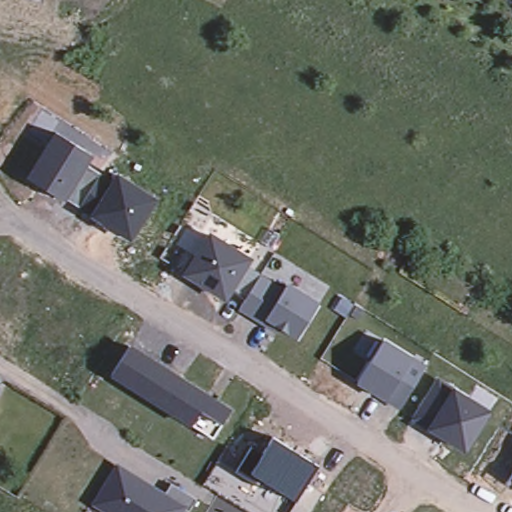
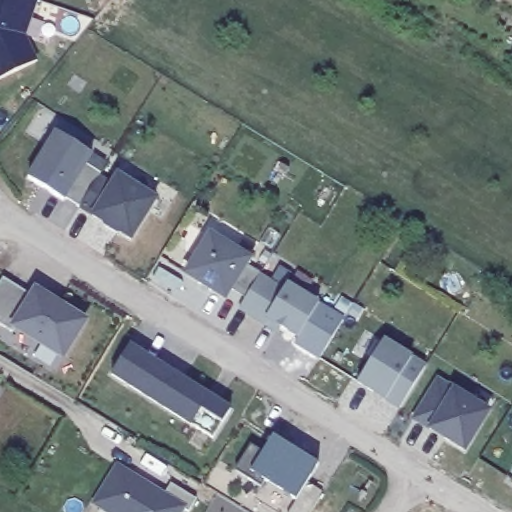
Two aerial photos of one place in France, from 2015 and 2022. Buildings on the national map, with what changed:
new [(27,34),(37,60),(0,79),(0,0),(37,0),(39,0),(27,34)]
unchanged [(40,0),(40,1),(37,0),(40,0)]
unchanged [(55,133),(93,155),(90,166),(100,173),(79,208),(28,176),(55,133)]
unchanged [(100,173),(114,179),(117,174),(157,199),(130,240),(90,215),(79,208),(100,173)]
unchanged [(234,286),(225,300),(182,275),(209,231),(254,258),(249,266),(258,272),(243,296),(234,286)]
unchanged [(262,274),(282,288),(287,283),(318,303),(296,338),(280,327),(273,331),(239,309),(262,274)]
new [(35,285),(90,320),(63,360),(10,328),(0,322),(0,283),(3,278),(30,292),(35,285)]
unchanged [(385,338),(426,364),(399,409),(356,385),(385,338)]
unchanged [(212,437),(110,372),(128,344),(230,409),(212,437)]
unchanged [(437,378),(452,389),(490,411),(463,451),(429,429),(410,420),(437,378)]
unchanged [(295,499),(263,480),(259,486),(236,471),(252,447),(265,451),(274,436),(318,464),(307,483),(321,492),(308,512),(289,512),(295,499)]
unchanged [(117,465),(165,493),(170,484),(199,501),(191,512),(190,512),(185,508),(182,512),(105,512),(92,505),(117,465)]

